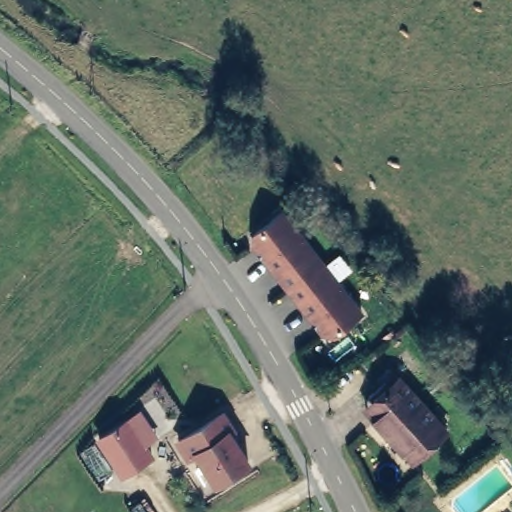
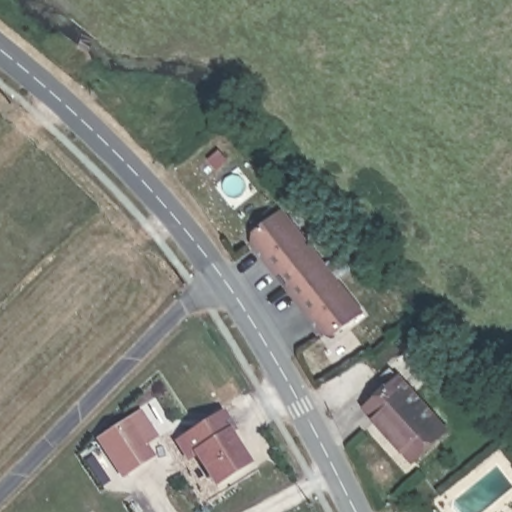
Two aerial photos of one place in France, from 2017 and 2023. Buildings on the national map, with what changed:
unchanged [(333,335),(323,334),(250,243),(250,234),(278,211),(361,312),(333,335)]
unchanged [(392,376),(390,373),(395,367),(451,432),(420,461),(383,421),(372,408),(379,399),(375,395),(392,376)]
unchanged [(186,461),(174,439),(223,407),(235,428),(232,431),(250,460),(213,487),(195,454),(186,461)]
unchanged [(159,437),(147,445),(155,458),(121,479),(96,440),(141,409),(159,437)]

